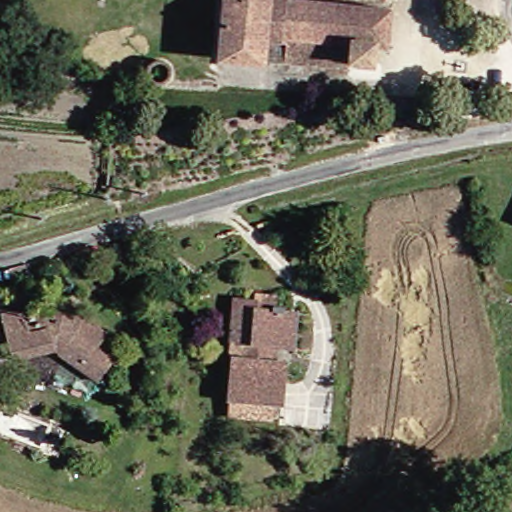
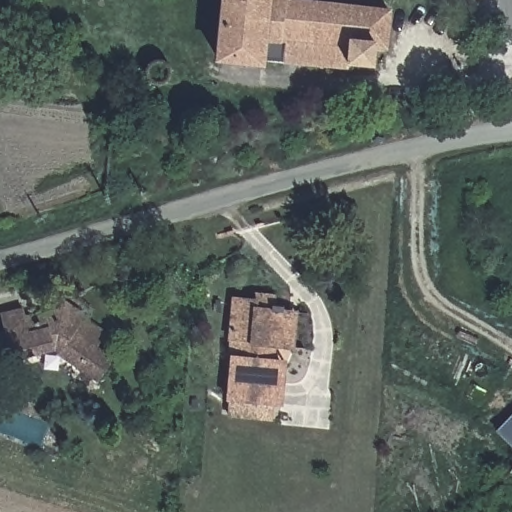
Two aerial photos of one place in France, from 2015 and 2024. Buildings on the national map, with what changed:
unchanged [(264,62),(227,58),(233,0),(298,0),(298,2),(399,12),(396,49),(384,48),(382,67),(357,64),(357,69),(273,60),(273,63),(264,62)]
unchanged [(235,396),(239,354),(255,356),(257,341),(231,337),(233,325),(237,292),(260,294),(261,288),(279,292),(277,305),(292,308),(302,310),(297,346),(288,345),(277,343),(275,359),(286,361),(293,362),(289,402),(281,401),(235,396)]
unchanged [(104,379),(60,350),(19,362),(8,353),(0,355),(0,330),(9,327),(3,311),(22,305),(25,314),(46,307),(60,303),(63,312),(80,326),(91,312),(115,331),(104,344),(109,348),(121,357),(117,363),(104,379)]
new [(512,416),(512,448),(496,432),(512,416)]
unchanged [(73,454),(59,446),(64,435),(79,444),(73,454)]

